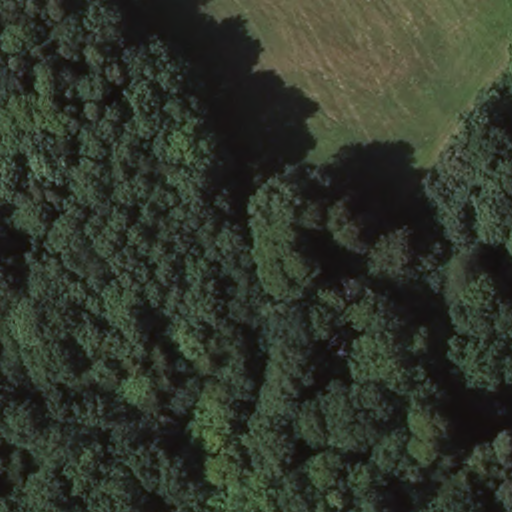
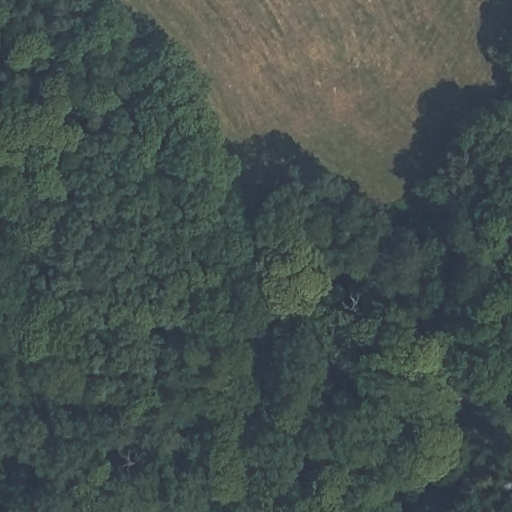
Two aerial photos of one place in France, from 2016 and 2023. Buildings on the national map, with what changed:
[]

